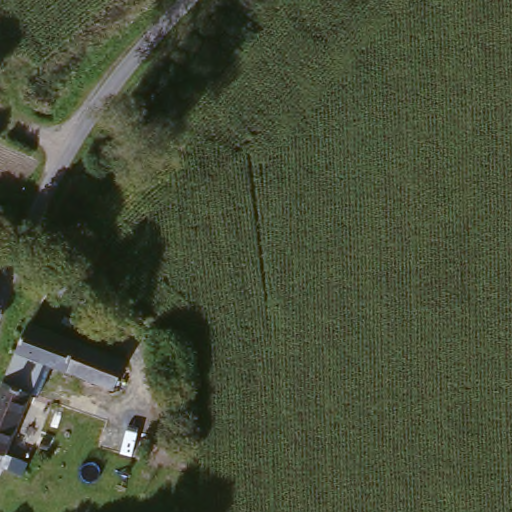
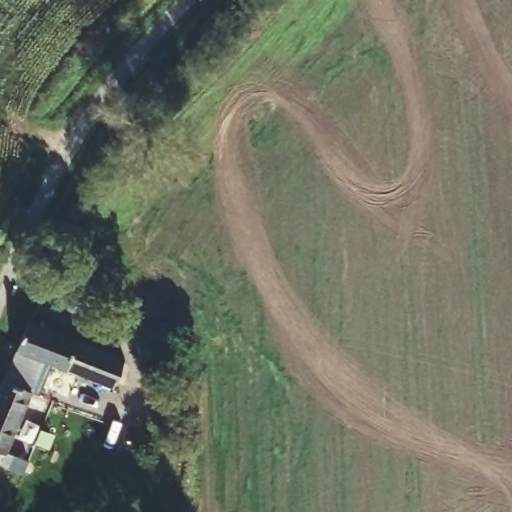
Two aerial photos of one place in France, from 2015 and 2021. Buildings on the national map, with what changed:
unchanged [(120,359),(108,389),(15,352),(28,322),(120,359)]
unchanged [(0,392),(6,379),(34,393),(3,452),(25,464),(17,479),(0,469),(0,392)]

